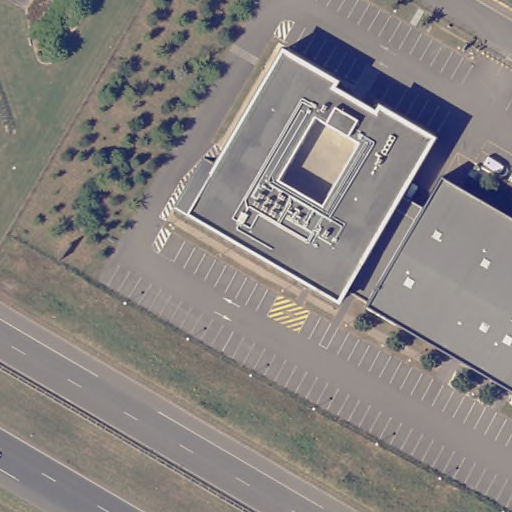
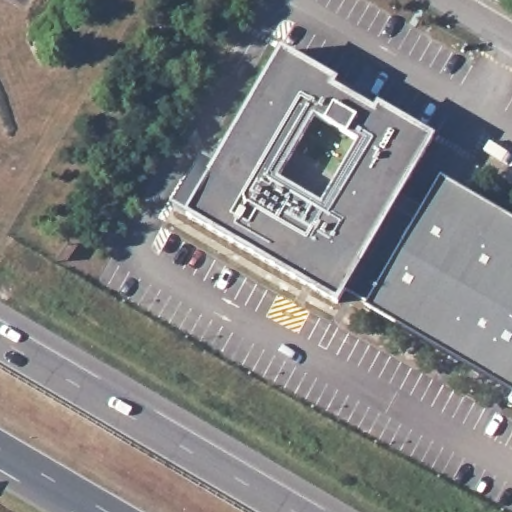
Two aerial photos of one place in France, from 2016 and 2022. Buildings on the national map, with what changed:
unchanged [(332,88),(375,113),(379,107),(433,138),(392,208),(415,221),(423,208),(441,177),(512,218),(512,393),(365,307),(367,303),(345,290),(338,302),(173,207),(179,196),(193,204),(282,51),(336,82),(332,88)]
unchanged [(512,398),(512,404),(509,402),(512,398)]

